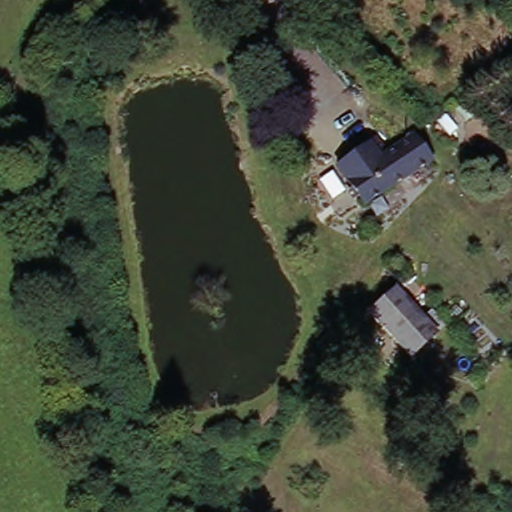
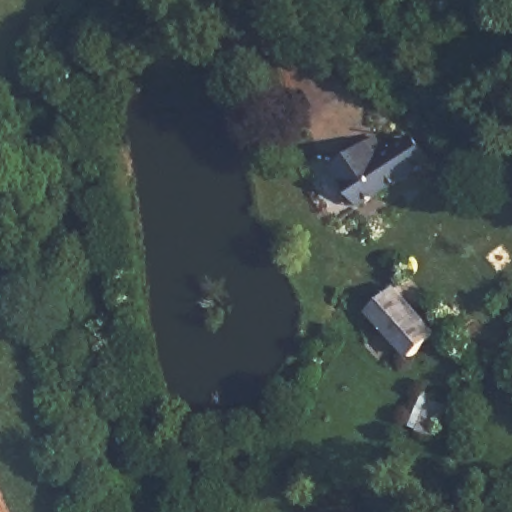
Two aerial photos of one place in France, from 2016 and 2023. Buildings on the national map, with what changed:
unchanged [(366,170),(369,175),(383,195),(362,209),(334,168),(379,136),(392,152),(366,170)]
unchanged [(432,163),(383,195),(369,175),(366,170),(414,137),(432,163)]
unchanged [(369,314),(392,291),(433,333),(408,355),(369,314)]

